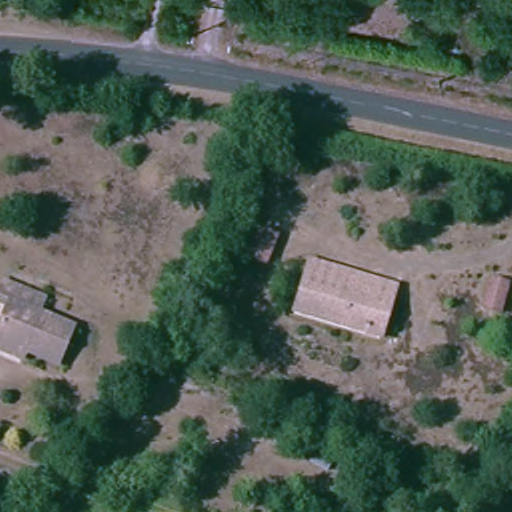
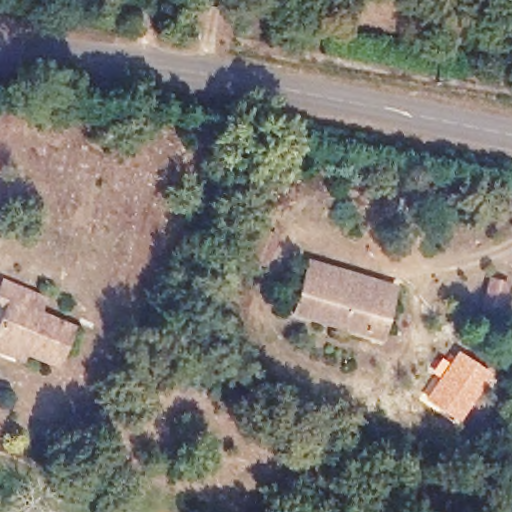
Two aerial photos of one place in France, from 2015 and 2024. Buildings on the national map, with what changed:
unchanged [(267,241),(259,273),(243,268),(251,236),(267,241)]
unchanged [(302,279),(308,261),(394,285),(389,300),(302,279)]
unchanged [(380,340),(292,318),(302,279),(389,300),(380,340)]
unchanged [(490,279),(509,284),(500,314),(483,307),(490,279)]
unchanged [(0,340),(1,336),(13,305),(0,299),(0,280),(41,295),(36,312),(78,329),(62,367),(31,354),(28,362),(0,351),(0,340)]
new [(438,377),(431,372),(441,358),(448,362),(456,351),(492,375),(458,423),(423,399),(438,377)]

